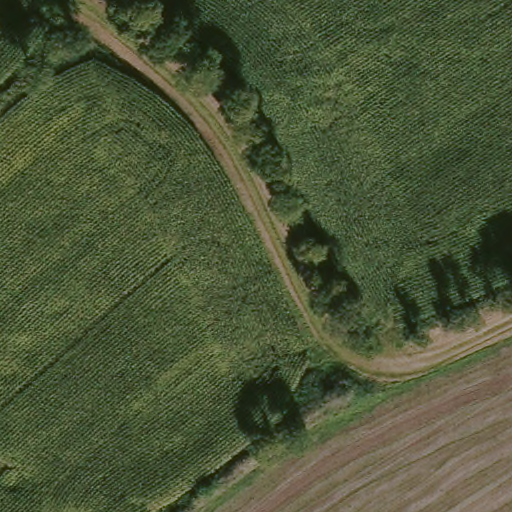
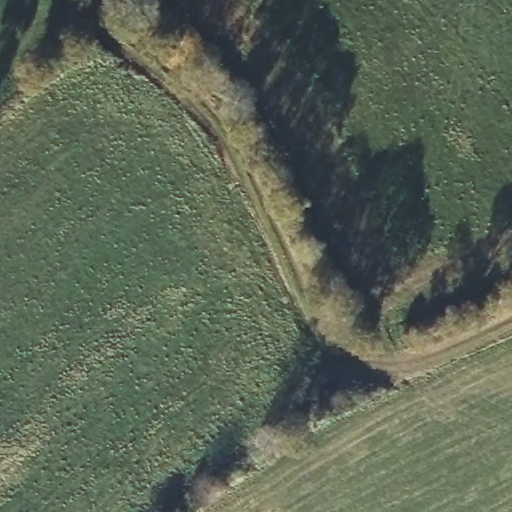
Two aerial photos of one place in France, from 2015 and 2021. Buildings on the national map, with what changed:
[]

